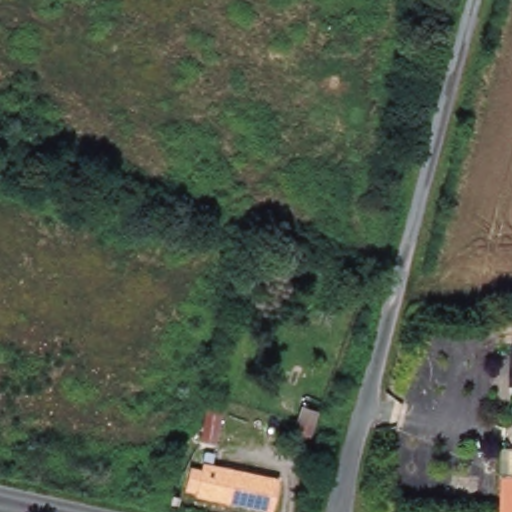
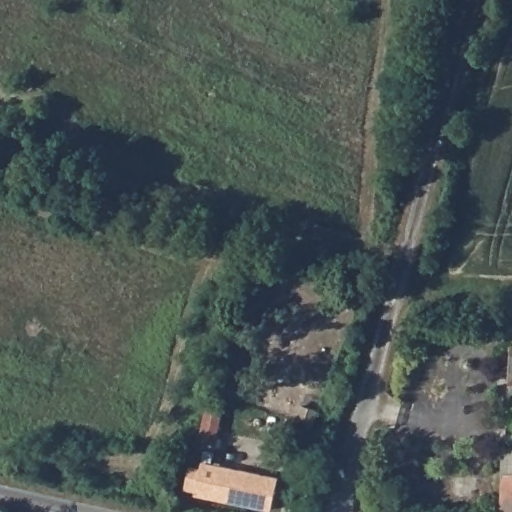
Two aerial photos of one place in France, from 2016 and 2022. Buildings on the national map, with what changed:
unchanged [(512,347),(512,381),(509,381),(510,347),(512,347)]
unchanged [(512,381),(512,392),(509,392),(509,381),(512,381)]
unchanged [(317,408),(309,436),(294,432),(301,403),(317,408)]
unchanged [(223,407),(216,444),(201,441),(207,405),(223,407)]
unchanged [(192,470),(201,471),(205,453),(213,455),(211,466),(278,478),(270,510),(197,496),(198,488),(188,486),(192,470)]
unchanged [(503,512),(504,477),(512,477),(512,512),(503,512)]

